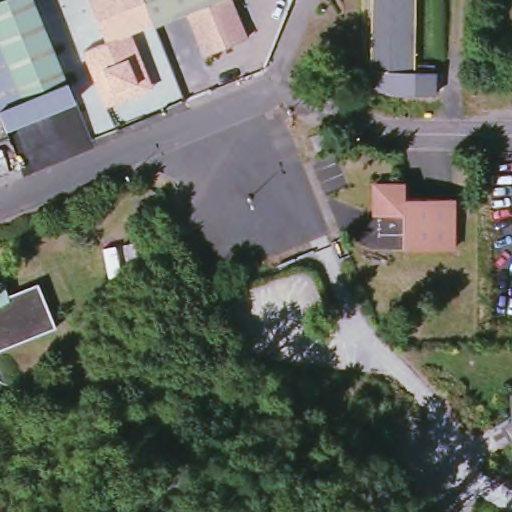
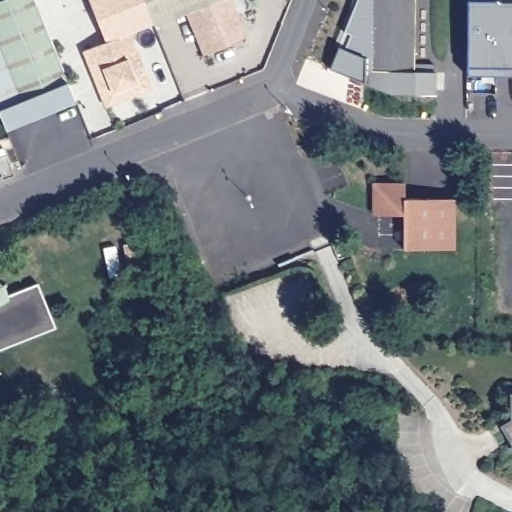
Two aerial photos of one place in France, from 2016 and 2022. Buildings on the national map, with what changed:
unchanged [(76,103),(6,131),(0,115),(0,0),(35,0),(69,84),(76,103)]
unchanged [(133,32),(109,42),(93,0),(148,0),(157,23),(133,32)]
unchanged [(158,25),(157,23),(148,0),(221,0),(191,11),(158,25)]
unchanged [(234,0),(249,39),(209,55),(191,11),(221,0),(234,0)]
unchanged [(376,73),(378,0),(422,0),(420,74),(376,73)]
new [(474,0),(512,1),(512,78),(472,78),(472,71),(474,0)]
unchanged [(107,102),(86,51),(109,42),(133,32),(153,84),(156,88),(143,93),(131,98),(108,107),(107,102)]
unchanged [(333,149),(323,153),(317,140),(327,136),(333,149)]
unchanged [(404,184),(404,199),(409,199),(454,199),(454,250),(412,250),(406,250),(404,250),(404,215),(378,215),(373,215),(373,203),(374,184),(404,184)]
unchanged [(0,353),(0,297),(3,302),(14,296),(43,283),(61,328),(0,353)]
unchanged [(512,395),(512,440),(507,441),(500,424),(511,421),(511,395),(512,395)]

